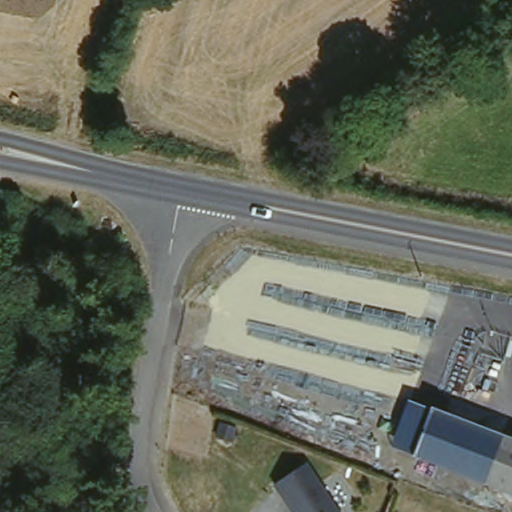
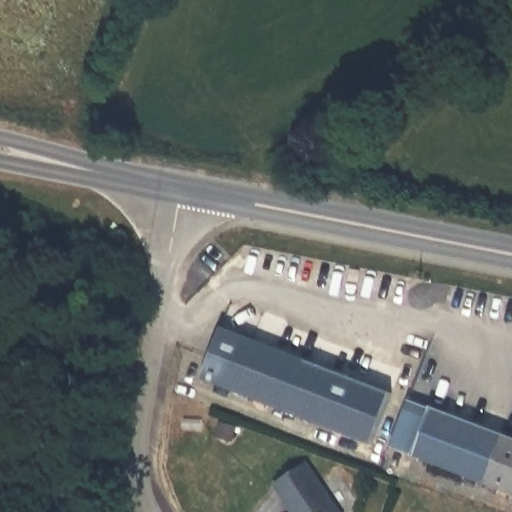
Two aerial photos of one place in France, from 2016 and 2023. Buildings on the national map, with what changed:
new [(222,330),(391,395),(371,446),(202,381),(222,330)]
unchanged [(409,400),(503,436),(485,483),(391,447),(409,400)]
unchanged [(512,494),(485,483),(503,436),(512,439),(512,494)]
unchanged [(332,512),(289,512),(273,491),(302,471),(332,512)]

